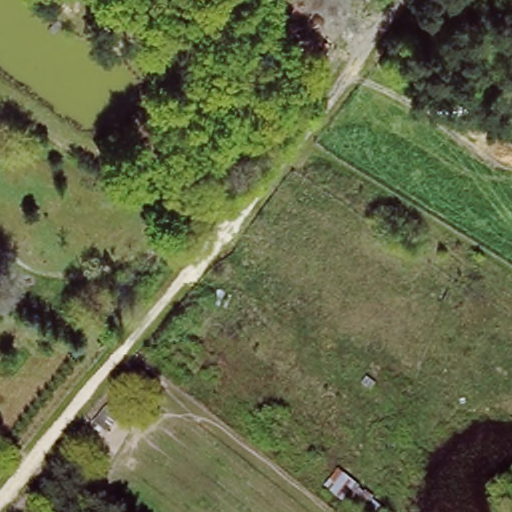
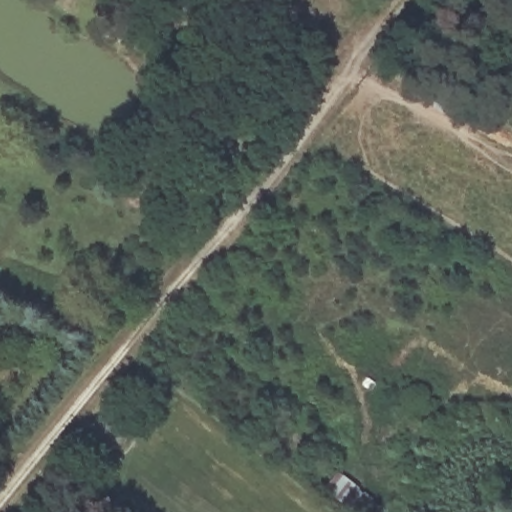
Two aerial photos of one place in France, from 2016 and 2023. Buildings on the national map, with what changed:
unchanged [(130,358),(160,382),(119,432),(88,410),(130,358)]
unchanged [(390,510),(389,512),(353,512),(341,501),(354,482),(390,510)]

